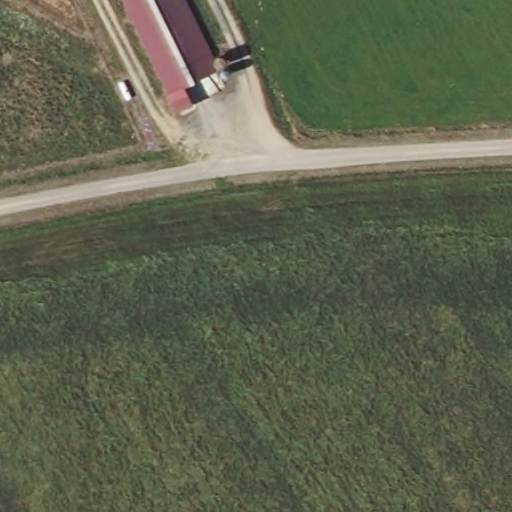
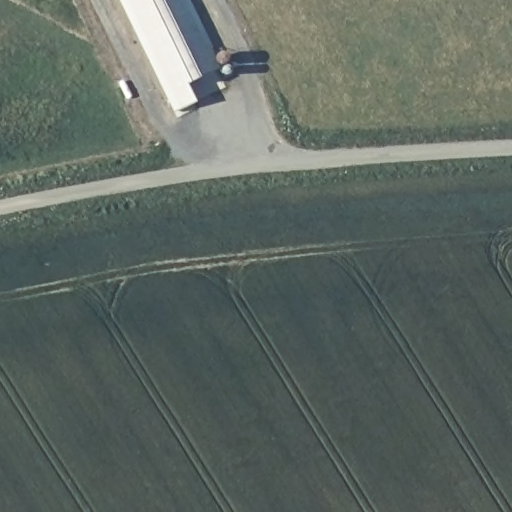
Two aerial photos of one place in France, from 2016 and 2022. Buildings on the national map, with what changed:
unchanged [(185,84),(195,102),(179,110),(123,0),(183,0),(217,67),(185,84)]

